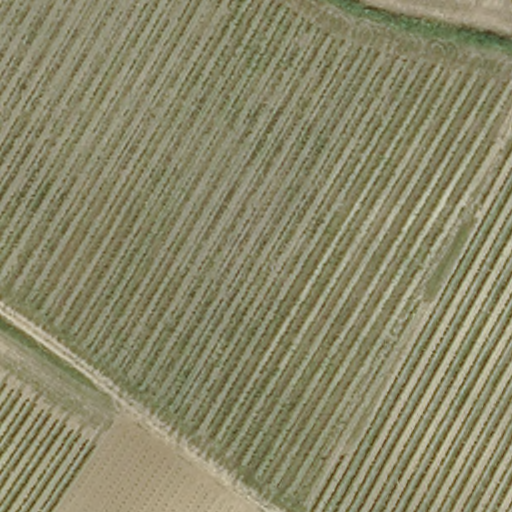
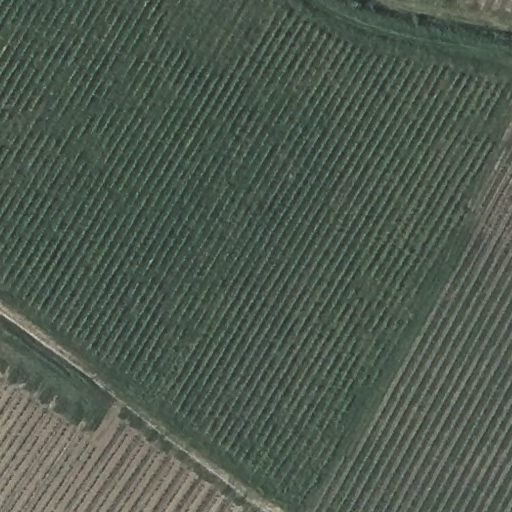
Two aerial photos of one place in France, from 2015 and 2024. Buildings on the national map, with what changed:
[]

